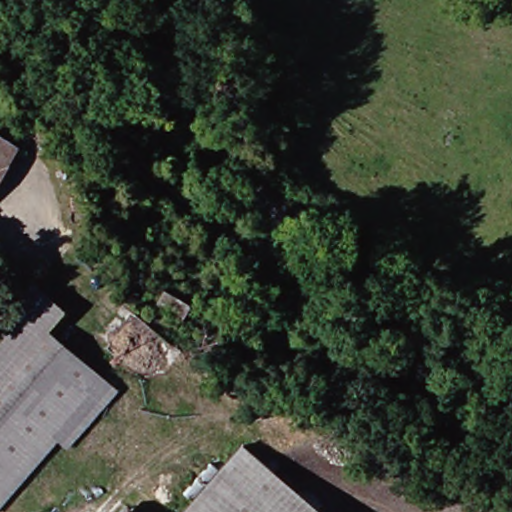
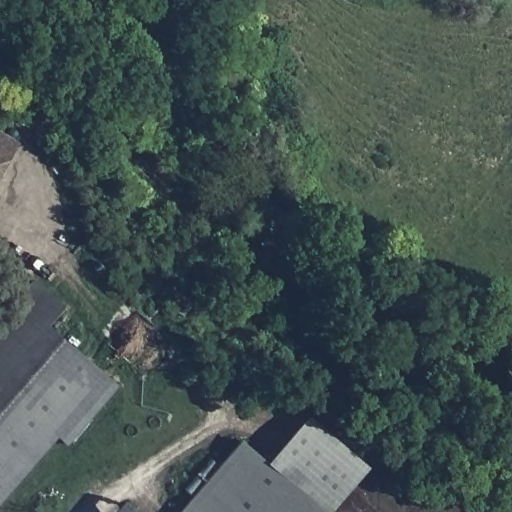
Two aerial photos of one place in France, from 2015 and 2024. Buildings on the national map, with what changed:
unchanged [(11,147),(0,167),(0,141),(11,147)]
unchanged [(0,382),(0,315),(25,287),(54,313),(42,332),(0,382)]
unchanged [(118,399),(69,456),(57,450),(0,512),(0,382),(42,332),(118,399)]
new [(336,512),(331,512),(326,508),(315,498),(273,462),(310,417),(372,469),(336,512)]
unchanged [(244,437),(315,498),(326,508),(331,512),(178,512),(244,437)]
unchanged [(125,501),(138,512),(116,512),(125,501)]

